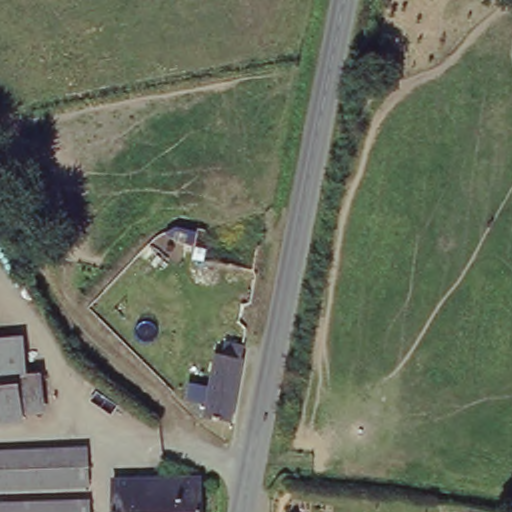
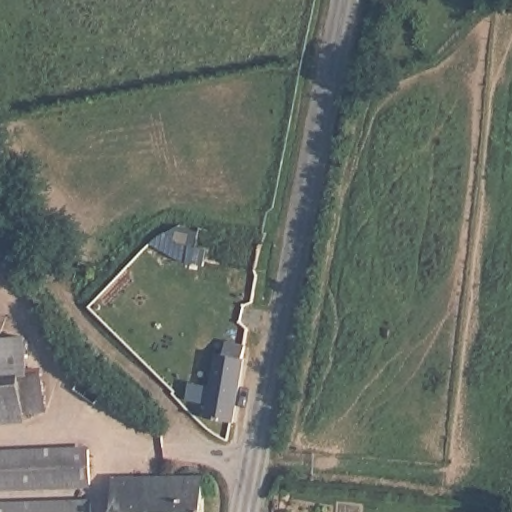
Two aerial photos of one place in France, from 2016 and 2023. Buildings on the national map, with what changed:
unchanged [(28,372),(0,373),(0,342),(25,340),(28,372)]
unchanged [(206,406),(185,402),(188,385),(209,390),(216,355),(223,356),(226,341),(245,343),(231,422),(204,420),(206,406)]
unchanged [(41,371),(42,415),(24,415),(26,433),(0,435),(0,373),(28,372),(41,371)]
unchanged [(66,475),(0,475),(0,450),(68,455),(66,475)]
unchanged [(65,495),(0,490),(0,475),(66,475),(65,495)]
unchanged [(109,512),(111,482),(200,483),(199,512),(109,512)]
unchanged [(88,512),(0,512),(0,503),(89,501),(88,512)]

